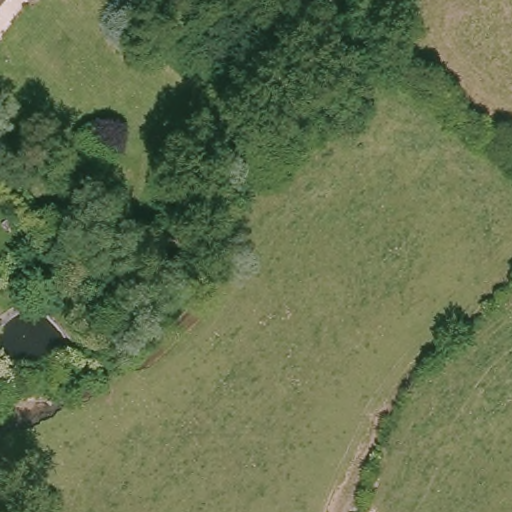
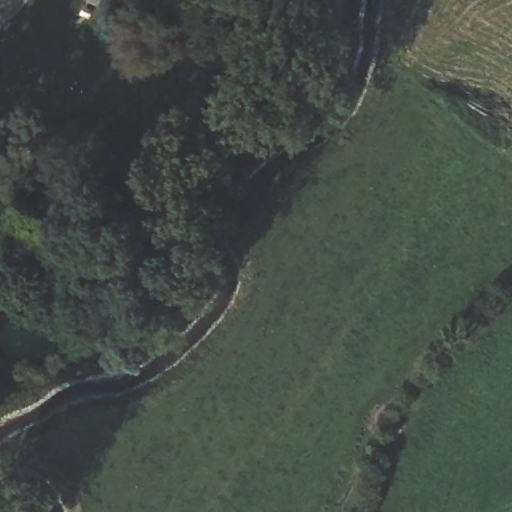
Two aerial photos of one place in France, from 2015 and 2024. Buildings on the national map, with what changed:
unchanged [(13,0),(0,16),(0,0),(13,0)]

